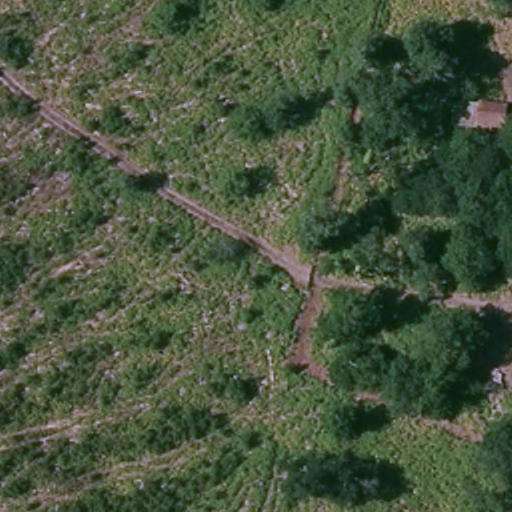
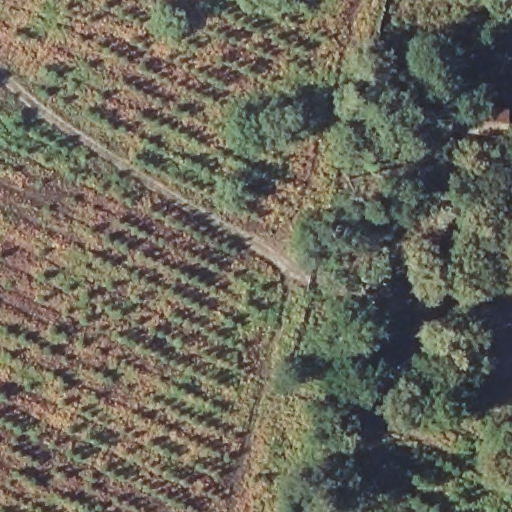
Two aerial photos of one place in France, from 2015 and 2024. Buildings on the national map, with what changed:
unchanged [(510,106),(506,134),(473,130),(475,101),(510,106)]

